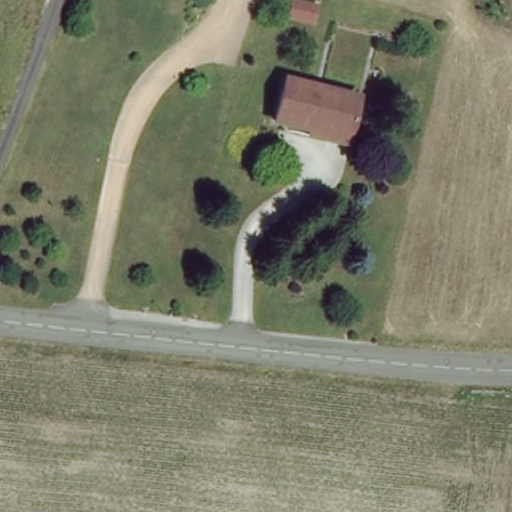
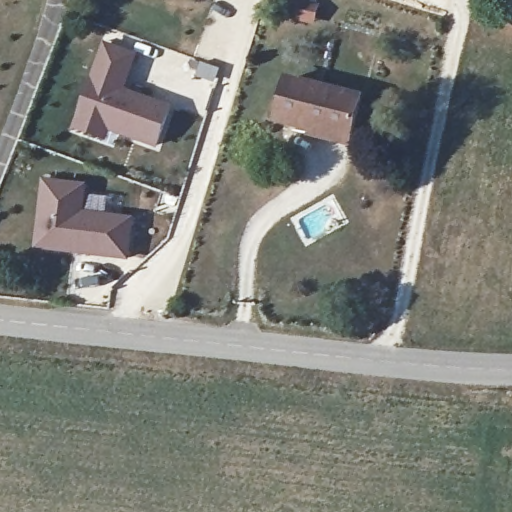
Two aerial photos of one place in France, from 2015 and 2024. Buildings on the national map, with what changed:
new [(118,49),(115,58),(127,62),(119,87),(169,107),(156,144),(107,126),(102,139),(71,129),(73,118),(68,115),(95,41),(118,49)]
unchanged [(315,134),(316,129),(277,120),(287,76),(362,93),(355,129),(352,143),(315,134)]
new [(82,182),(80,212),(128,216),(126,259),(32,253),(37,180),(82,182)]

